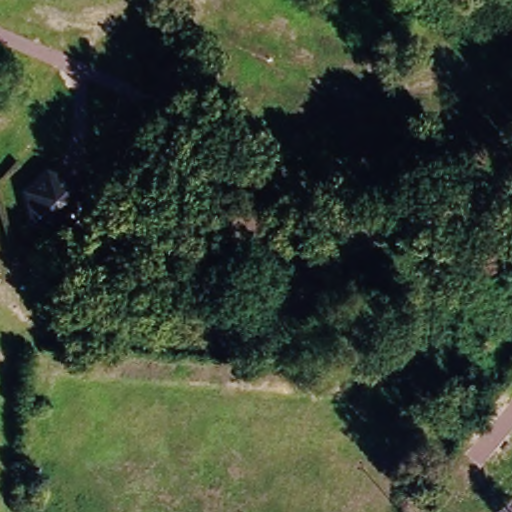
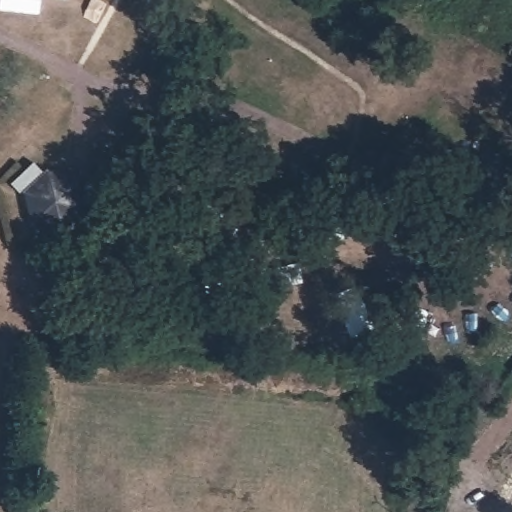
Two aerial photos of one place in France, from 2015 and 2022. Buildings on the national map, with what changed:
unchanged [(47,176),(75,183),(81,213),(65,236),(31,230),(23,194),(47,176)]

